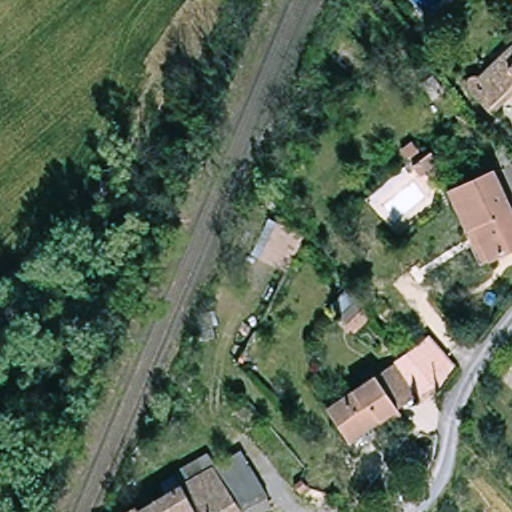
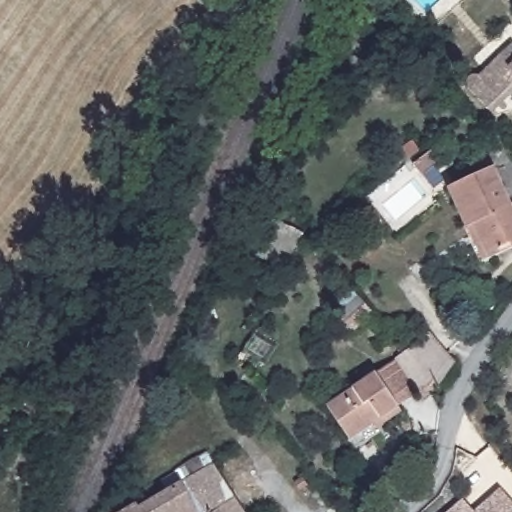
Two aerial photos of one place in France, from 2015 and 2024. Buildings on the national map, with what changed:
unchanged [(472,82),(470,80),(470,76),(471,75),(473,72),(476,70),(478,69),(481,69),(484,70),(512,44),(512,83),(491,103),(472,82)]
unchanged [(437,161),(418,175),(411,167),(430,152),(437,161)]
unchanged [(490,260),(474,225),(467,227),(449,190),(492,169),(512,211),(512,249),(490,260)]
unchanged [(398,357),(431,333),(456,361),(420,391),(398,357)]
unchanged [(326,402),(398,357),(420,391),(351,442),(326,402)]
unchanged [(248,450),(282,505),(266,512),(255,512),(225,464),(248,450)]
unchanged [(119,510),(161,487),(167,497),(225,464),(255,512),(120,512),(119,510)]
unchanged [(307,485),(300,490),(294,482),(301,476),(307,485)]
new [(478,510),(499,490),(512,505),(512,512),(475,512),(478,510)]
new [(461,502),(470,512),(450,512),(461,502)]

